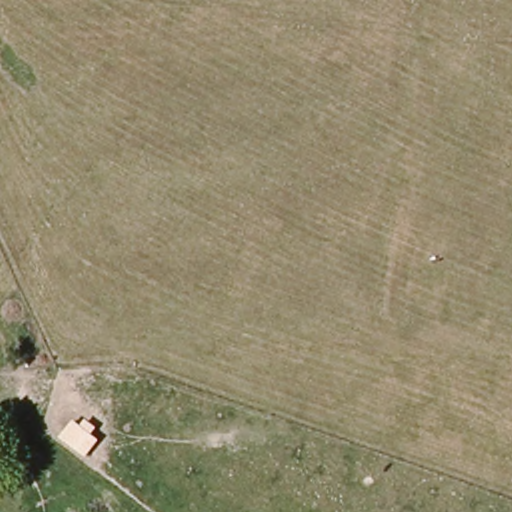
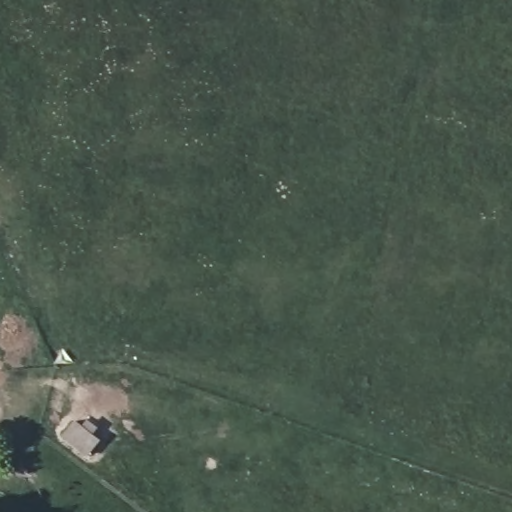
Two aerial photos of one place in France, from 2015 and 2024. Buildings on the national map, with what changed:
unchanged [(92,435),(100,440),(86,456),(61,436),(74,420),(81,425),(86,418),(97,426),(92,435)]

